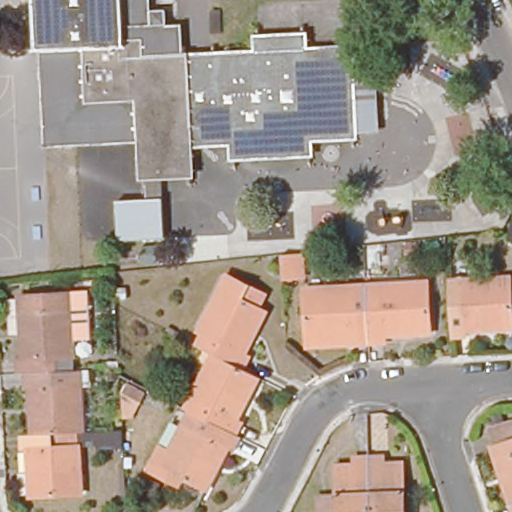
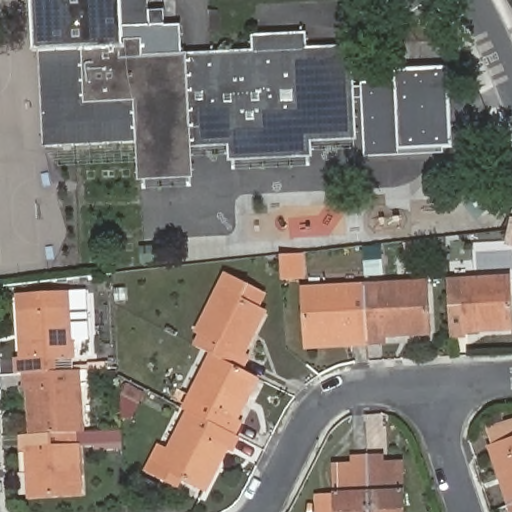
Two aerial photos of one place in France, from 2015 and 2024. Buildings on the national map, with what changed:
unchanged [(196,178),(165,180),(149,180),(145,181),(143,146),(48,152),(44,56),(39,56),(37,0),(152,0),(152,17),(167,16),(168,31),(184,31),(186,63),(259,60),(259,45),(309,43),(309,57),(355,55),(359,142),(314,144),(315,159),(236,163),(236,148),(194,149),(196,178)]
new [(357,89),(361,89),(361,82),(395,80),(394,70),(449,68),(453,146),(444,147),(443,153),(365,156),(362,98),(357,99),(357,89)]
demolished [(119,206),(150,204),(166,203),(168,242),(122,244),(119,206)]
unchanged [(307,254),(309,279),(286,281),(285,256),(307,254)]
unchanged [(222,354),(205,346),(210,335),(206,333),(235,276),(258,287),(251,299),(275,313),(254,352),(258,355),(251,369),(231,359),(223,355),(222,354)]
unchanged [(508,277),(511,329),(464,331),(464,336),(450,337),(450,332),(450,330),(449,308),(462,307),(461,280),(508,277)]
unchanged [(370,285),(431,282),(434,333),(388,336),(388,340),(373,341),(370,285)]
unchanged [(360,342),(359,337),(310,341),(308,289),(370,285),(373,341),(360,342)]
unchanged [(20,362),(17,299),(68,297),(83,296),(87,348),(72,349),(73,376),(24,379),(14,379),(13,363),(20,362)]
unchanged [(243,434),(228,427),(220,423),(215,420),(198,412),(194,409),(222,354),(223,355),(231,359),(251,369),(267,378),(247,419),(251,421),(243,435),(243,434)]
unchanged [(24,379),(73,376),(78,376),(82,437),(76,438),(64,438),(59,438),(30,440),(28,395),(25,395),(24,379)]
unchanged [(241,451),(236,448),(216,489),(161,462),(170,445),(179,450),(198,412),(215,420),(220,423),(228,427),(243,434),(243,435),(248,437),(241,451)]
unchanged [(490,446),(485,430),(512,421),(512,504),(509,505),(488,447),(490,446)]
unchanged [(27,453),(21,454),(21,441),(30,440),(59,438),(64,438),(76,438),(80,499),(29,502),(27,453)]
unchanged [(358,470),(358,463),(373,462),(373,472),(375,512),(325,512),(324,501),(341,500),(340,471),(358,470)]
unchanged [(373,462),(387,462),(387,469),(406,468),(407,497),(408,512),(375,512),(373,472),(373,462)]
unchanged [(511,512),(509,505),(512,504),(512,512),(511,512)]

